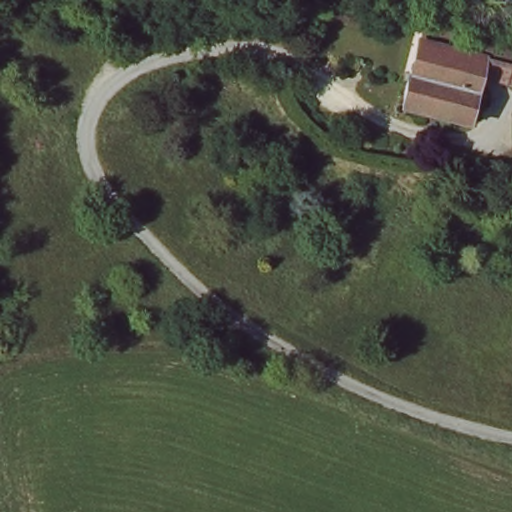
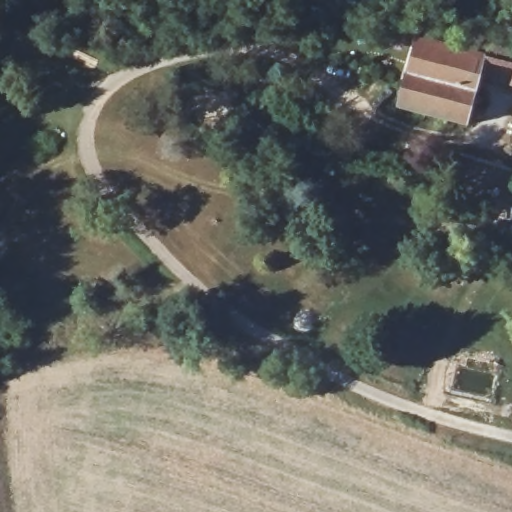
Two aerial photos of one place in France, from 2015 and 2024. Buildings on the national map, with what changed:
unchanged [(485,75),(480,91),(412,73),(423,41),(489,60),(512,63),(512,83),(485,75)]
unchanged [(473,122),(407,107),(412,73),(480,91),(473,122)]

